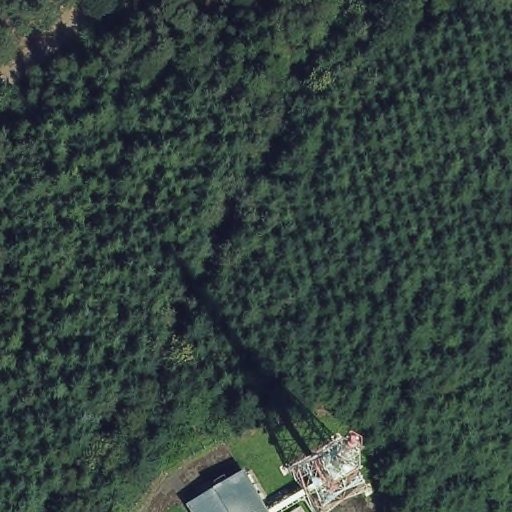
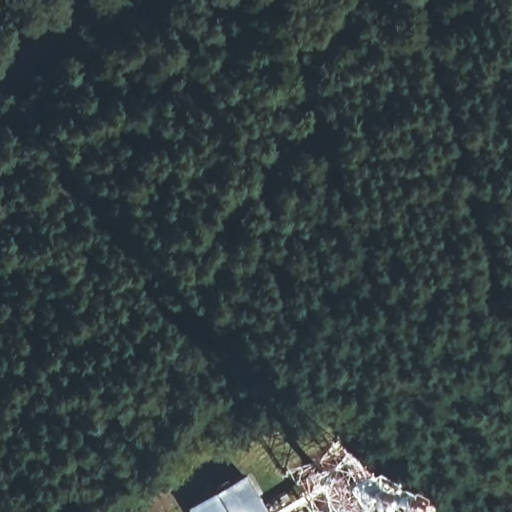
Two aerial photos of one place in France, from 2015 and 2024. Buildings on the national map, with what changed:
unchanged [(192,512),(187,502),(241,473),(262,512),(192,512)]

